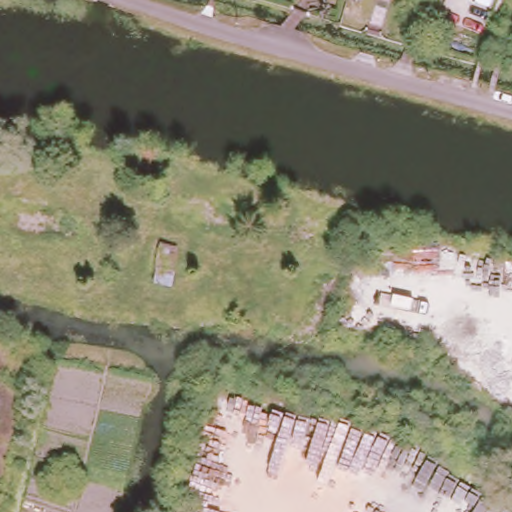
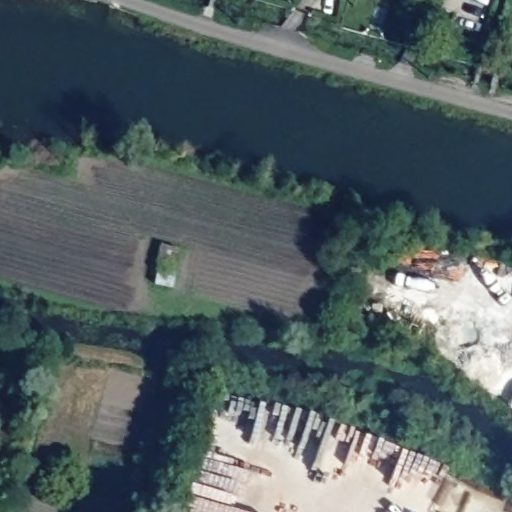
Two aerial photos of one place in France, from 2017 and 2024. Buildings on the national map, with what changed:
unchanged [(161,255),(178,259),(172,285),(155,280),(161,255)]

